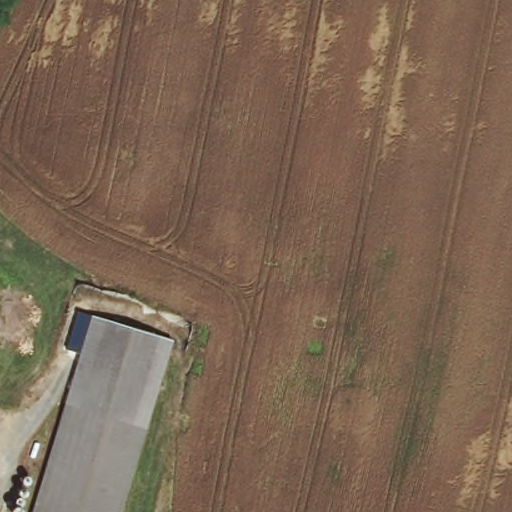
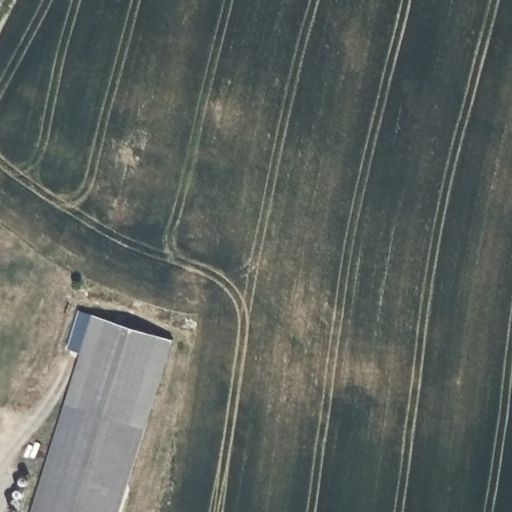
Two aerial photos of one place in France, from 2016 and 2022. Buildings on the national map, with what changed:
unchanged [(169,332),(123,512),(38,512),(89,312),(169,332)]

